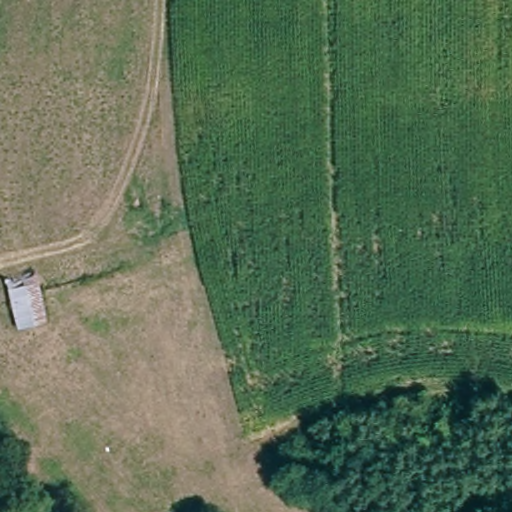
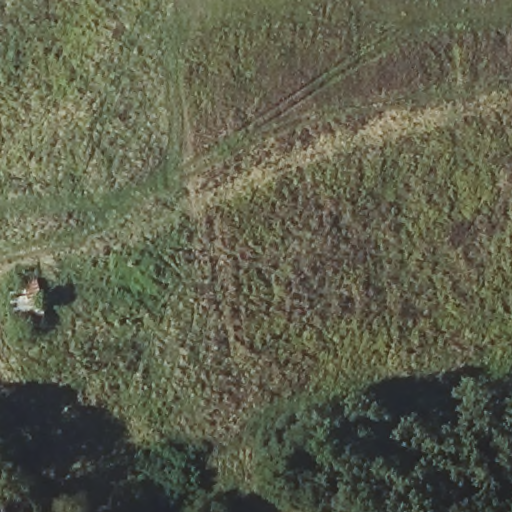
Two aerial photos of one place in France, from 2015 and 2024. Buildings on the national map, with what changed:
unchanged [(16,331),(5,280),(34,274),(47,324),(16,331)]

